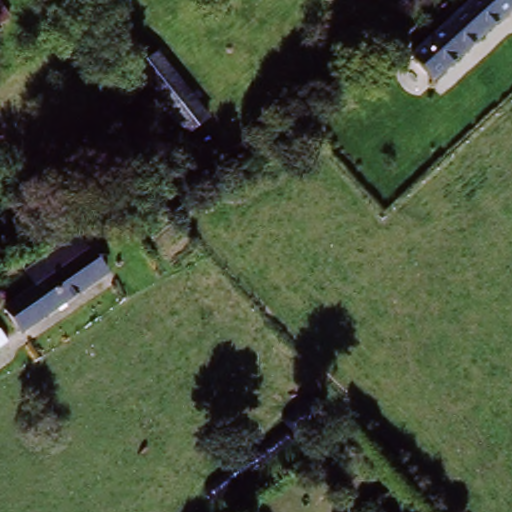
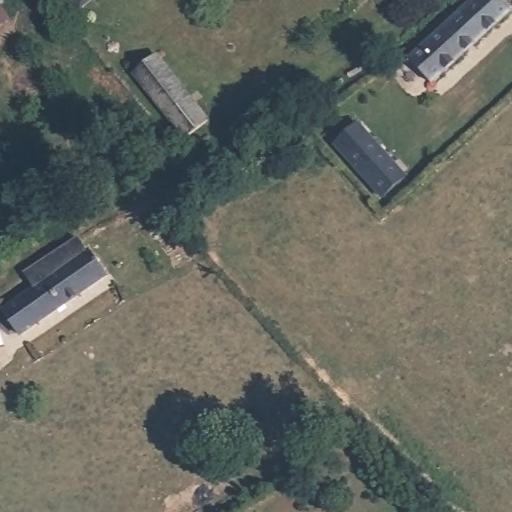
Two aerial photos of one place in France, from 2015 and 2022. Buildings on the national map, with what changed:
unchanged [(80,10),(70,0),(93,0),(80,10)]
unchanged [(437,87),(416,65),(485,0),(504,0),(512,8),(512,18),(437,87)]
unchanged [(201,133),(183,150),(132,87),(151,71),(201,133)]
new [(360,122),(409,176),(383,200),(335,144),(360,122)]
unchanged [(32,277),(83,242),(94,258),(42,292),(32,277)]
unchanged [(108,280),(26,335),(11,313),(42,292),(94,258),(108,280)]

